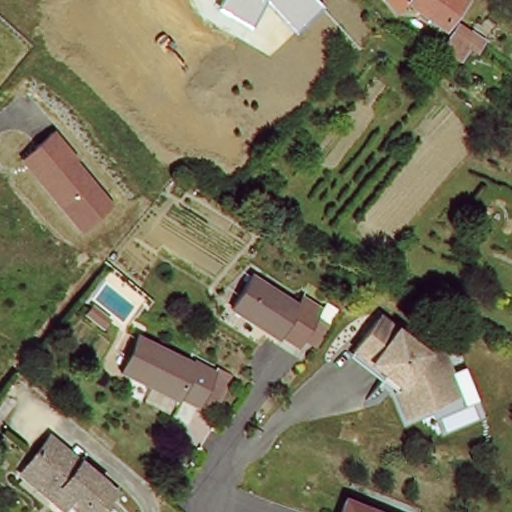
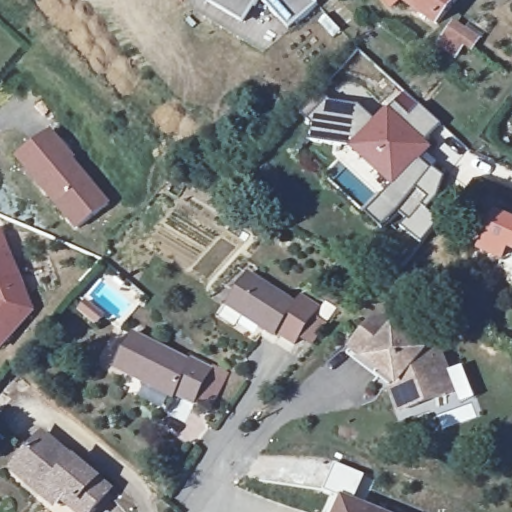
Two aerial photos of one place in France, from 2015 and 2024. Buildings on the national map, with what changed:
unchanged [(248,27),(211,7),(216,0),(259,0),(248,27)]
unchanged [(318,6),(291,31),(261,0),(312,0),(318,6)]
unchanged [(385,2),(384,0),(387,0),(385,2)]
unchanged [(437,20),(406,0),(451,0),(437,20)]
unchanged [(465,44),(468,47),(460,60),(445,51),(461,27),(470,35),(465,44)]
new [(396,189),(353,150),(315,142),(315,126),(305,115),(325,95),(332,103),(362,109),(375,122),(389,107),(391,110),(407,94),(442,125),(426,143),(433,150),(421,162),(432,172),(418,192),(430,201),(412,223),(399,212),(385,229),(370,216),(396,189)]
unchanged [(18,159),(52,131),(110,205),(80,233),(18,159)]
new [(1,230),(35,312),(0,355),(0,230),(1,230)]
unchanged [(300,288),(320,302),(312,316),(327,324),(311,351),(246,320),(225,310),(245,270),(292,300),(300,288)]
unchanged [(395,382),(361,357),(387,323),(433,358),(445,352),(455,376),(464,398),(457,401),(418,417),(410,420),(395,382)]
unchanged [(202,405),(120,370),(135,333),(217,367),(202,405)]
unchanged [(76,452),(112,483),(92,508),(53,478),(47,488),(15,465),(38,435),(69,457),(76,452)]
unchanged [(390,512),(330,512),(337,490),(390,512)]

